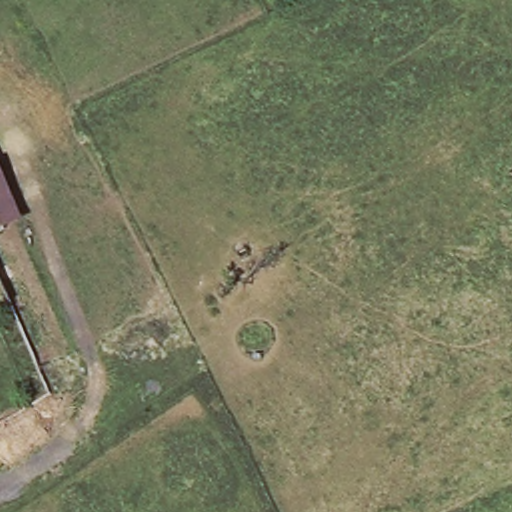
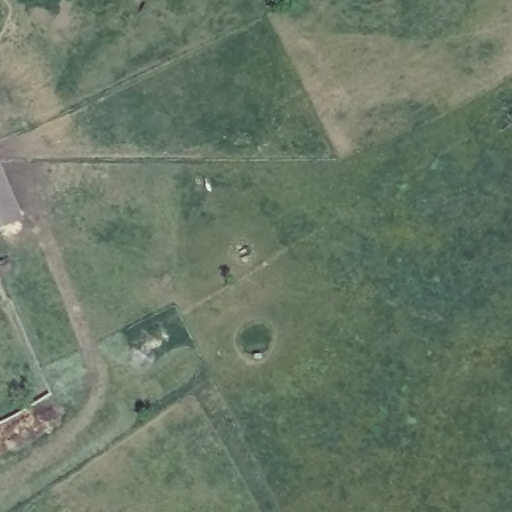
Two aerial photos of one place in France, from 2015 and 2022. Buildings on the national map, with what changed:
unchanged [(0,233),(0,176),(22,222),(0,233)]

